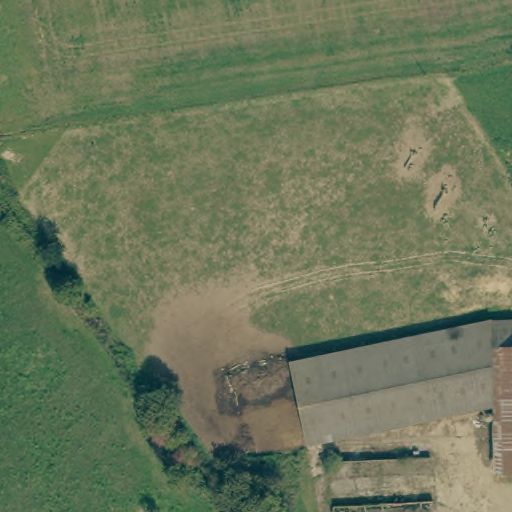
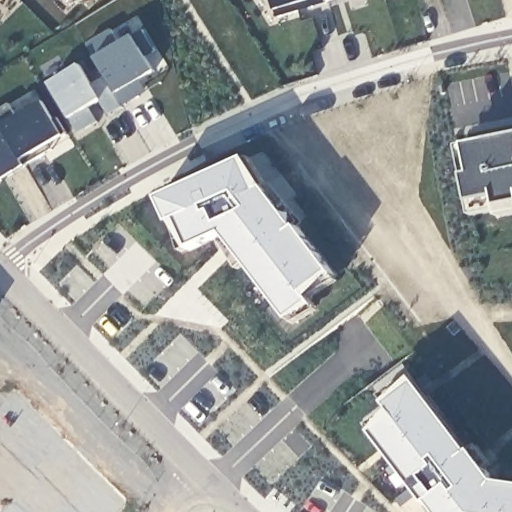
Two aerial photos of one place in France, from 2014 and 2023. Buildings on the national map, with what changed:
new [(75,0),(77,0),(76,1),(75,0)]
new [(276,11),(276,10),(273,0),(336,0),(328,3),(278,18),(276,11)]
new [(110,29),(119,44),(133,36),(142,31),(153,50),(143,55),(152,70),(160,83),(109,115),(100,100),(91,84),(105,75),(95,58),(86,44),(110,29)]
new [(47,84),(80,65),(91,84),(100,100),(88,107),(96,121),(78,133),(69,118),(47,84)]
new [(8,104),(15,116),(40,102),(61,135),(20,161),(24,166),(0,181),(0,110),(8,104)]
new [(512,215),(498,217),(495,197),(468,202),(462,175),(470,173),(465,144),(512,135),(512,215)]
new [(245,159),(294,229),(297,227),(332,274),(309,299),(315,306),(291,320),(224,234),(190,250),(172,222),(170,223),(158,199),(245,159)]
demolished [(503,353),(494,353),(495,377),(333,401),(326,356),(502,328),(503,353)]
new [(390,411),(383,403),(412,377),(468,453),(470,452),(495,483),(512,485),(512,512),(435,512),(428,503),(426,504),(371,434),(390,411)]

